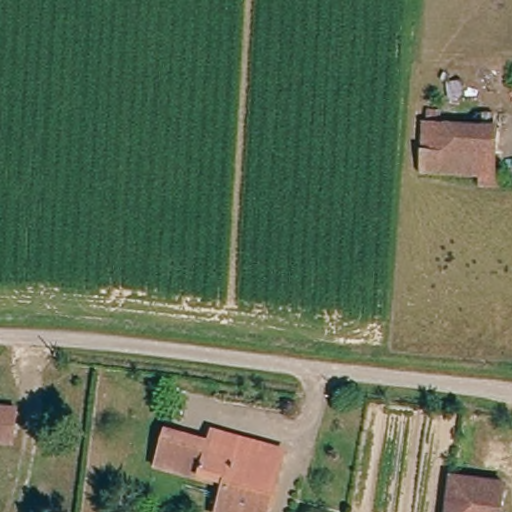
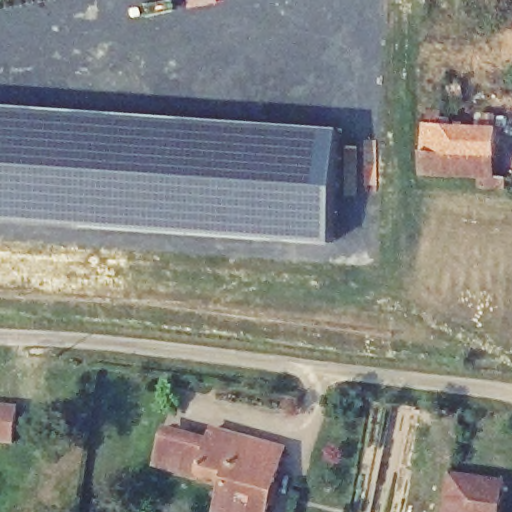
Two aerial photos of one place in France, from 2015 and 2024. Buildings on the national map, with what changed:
new [(0,221),(0,104),(341,127),(334,243),(0,221)]
unchanged [(507,190),(480,188),(479,176),(420,173),(425,121),(500,126),(495,177),(507,178),(507,190)]
unchanged [(12,448),(0,447),(0,408),(17,410),(12,448)]
unchanged [(219,428),(287,450),(283,464),(215,443),(219,428)]
unchanged [(283,464),(271,512),(222,512),(231,480),(207,473),(204,484),(157,470),(167,436),(213,449),(215,443),(283,464)]
unchanged [(512,493),(512,512),(460,512),(464,485),(512,493)]

